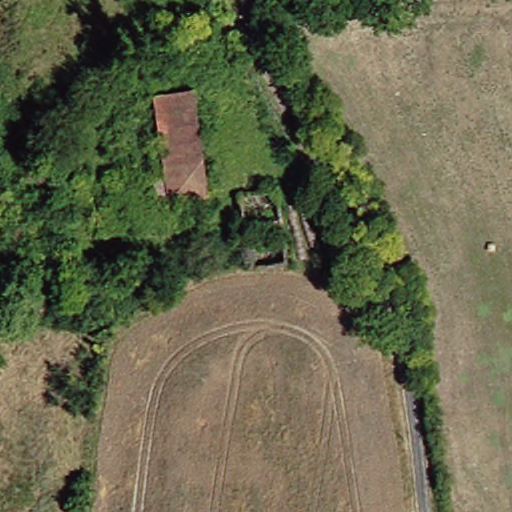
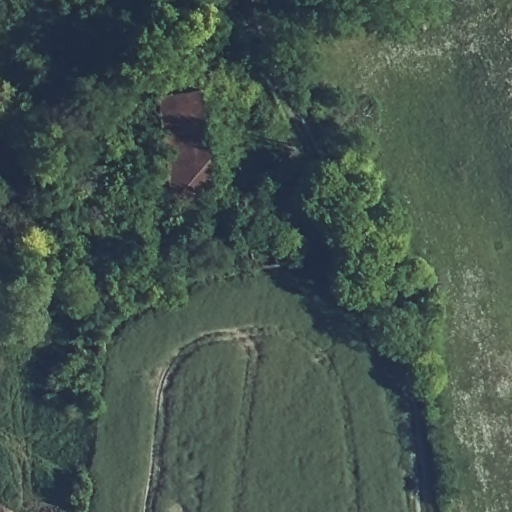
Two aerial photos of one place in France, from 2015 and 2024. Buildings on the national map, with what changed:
unchanged [(199,201),(162,207),(148,200),(147,184),(159,181),(146,102),(184,96),(199,201)]

